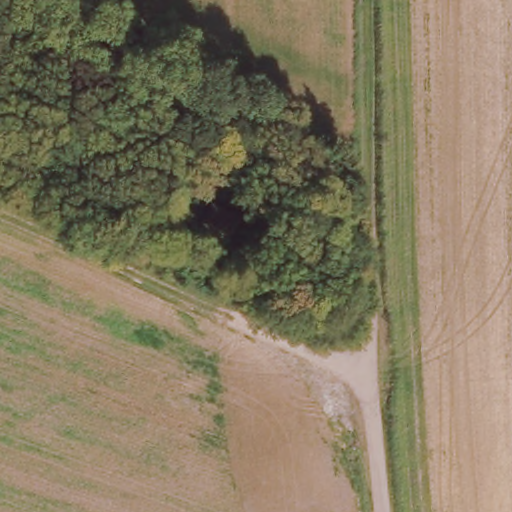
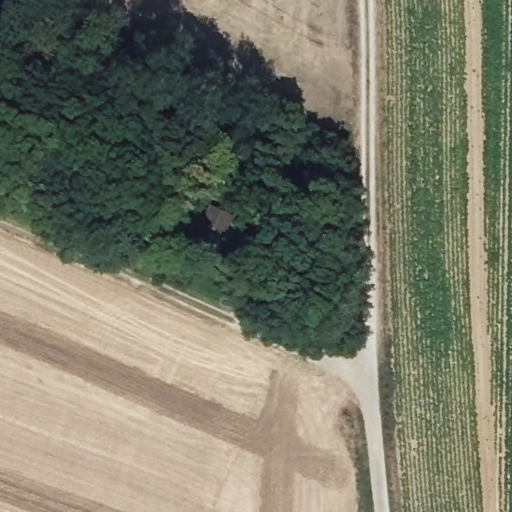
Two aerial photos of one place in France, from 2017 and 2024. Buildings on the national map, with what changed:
unchanged [(220,207),(243,216),(236,234),(213,224),(220,207)]

